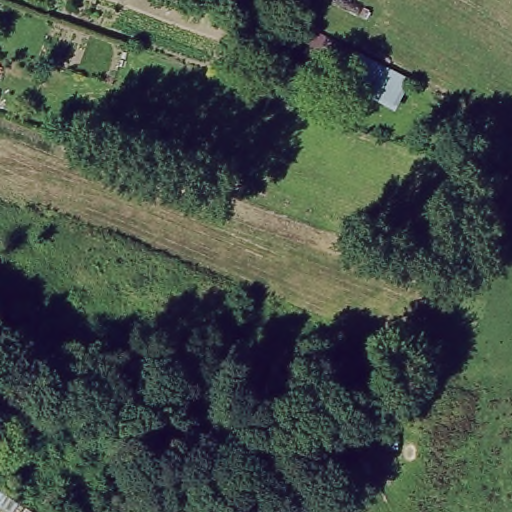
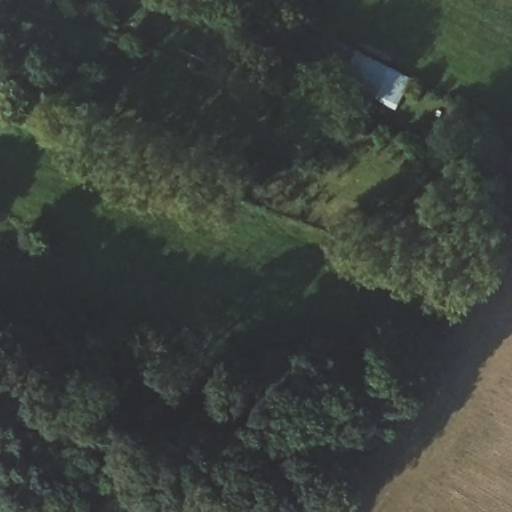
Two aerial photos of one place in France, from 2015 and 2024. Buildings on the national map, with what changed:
unchanged [(414,77),(397,110),(339,81),(344,71),(305,51),(319,29),(414,77)]

